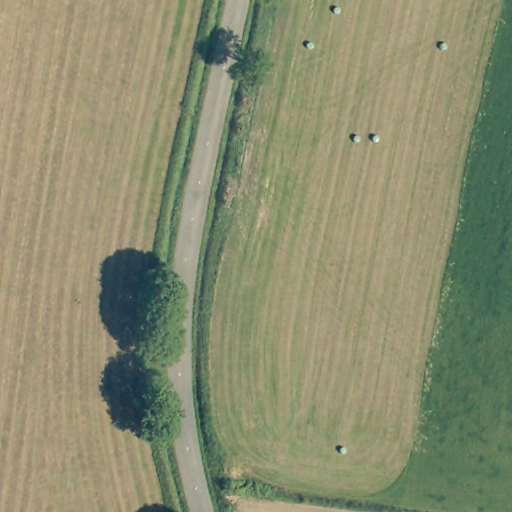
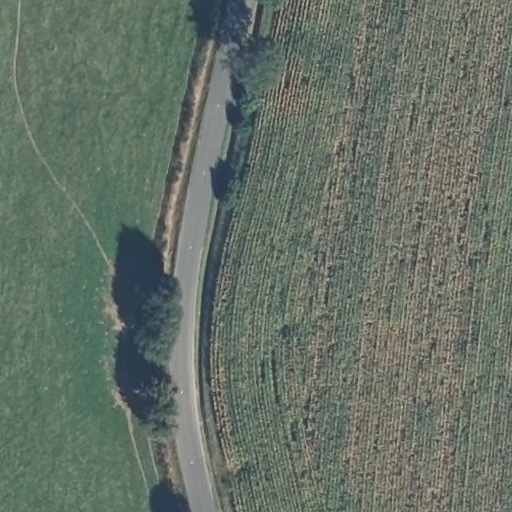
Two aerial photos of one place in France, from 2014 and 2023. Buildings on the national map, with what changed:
[]

